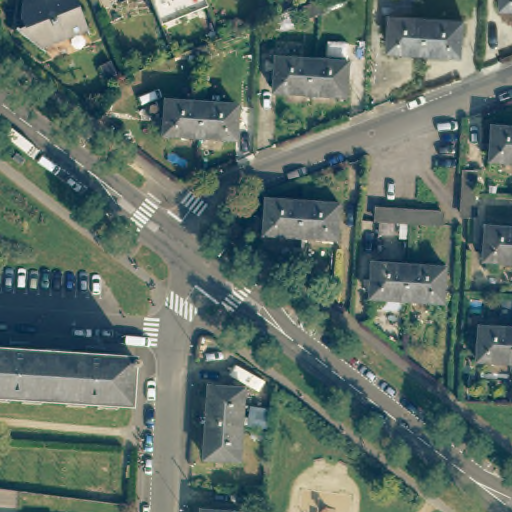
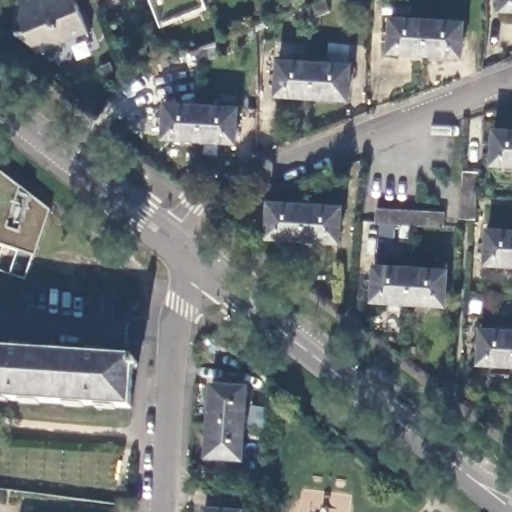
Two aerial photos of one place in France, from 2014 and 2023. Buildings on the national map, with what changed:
unchanged [(39,46),(16,25),(21,23),(18,14),(19,0),(73,0),(84,29),(39,46)]
unchanged [(157,21),(148,0),(203,0),(204,2),(157,21)]
unchanged [(303,8),(314,3),(319,1),(323,0),(328,11),(318,15),(308,19),(303,8)]
unchanged [(502,9),(503,0),(512,0),(512,10),(502,9)]
unchanged [(425,53),(389,51),(391,17),(427,19),(425,53)]
unchanged [(464,22),(461,56),(425,53),(427,19),(464,22)]
unchanged [(187,54),(198,50),(208,46),(213,56),(203,61),(192,65),(187,54)]
unchanged [(313,96),(277,93),(279,60),(314,62),(313,96)]
unchanged [(350,65),(348,99),(313,96),(314,62),(350,65)]
unchanged [(199,139),(164,136),(164,103),(200,105),(199,139)]
unchanged [(238,107),(235,142),(199,139),(200,105),(238,107)]
unchanged [(492,163),(494,130),(512,131),(512,165),(492,163)]
new [(25,279),(0,271),(0,172),(51,211),(34,255),(25,279)]
unchanged [(477,174),(476,196),(474,217),(462,217),(466,173),(477,174)]
unchanged [(303,239),(267,236),(269,202),(305,204),(303,239)]
unchanged [(341,206),(339,241),(303,239),(305,204),(341,206)]
unchanged [(378,210),(443,215),(443,226),(414,224),(377,221),(378,210)]
unchanged [(486,263),(488,229),(512,231),(512,265),(486,263)]
unchanged [(372,299),(374,265),(411,267),(409,302),(372,299)]
unchanged [(411,267),(447,270),(445,305),(409,302),(411,267)]
unchanged [(479,362),(482,328),(512,331),(512,364),(479,362)]
unchanged [(0,353),(10,354),(11,345),(26,345),(25,354),(87,358),(87,349),(102,350),(102,359),(133,361),(133,363),(138,363),(137,369),(133,368),(130,408),(0,400),(0,353)]
unchanged [(212,387),(248,390),(245,427),(209,424),(212,387)]
unchanged [(245,427),(242,462),(207,460),(209,424),(245,427)]

